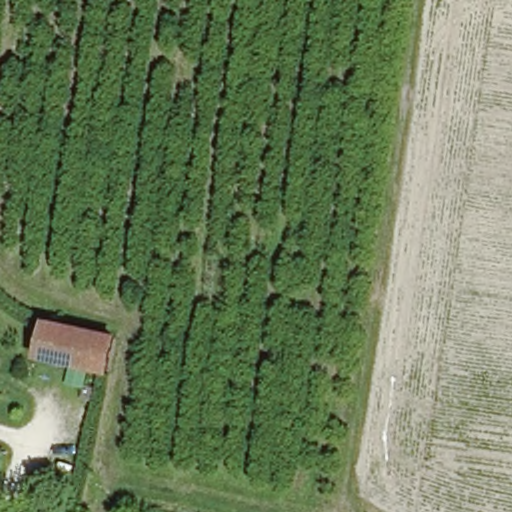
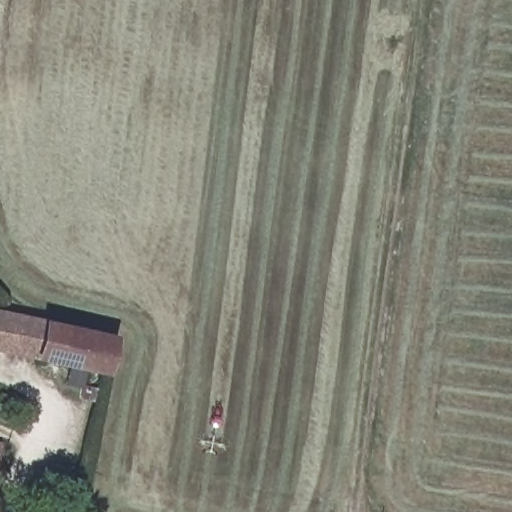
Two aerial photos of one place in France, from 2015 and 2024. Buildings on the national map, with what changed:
new [(37,354),(0,351),(0,310),(45,319),(37,354)]
unchanged [(110,337),(104,371),(37,354),(45,319),(110,337)]

